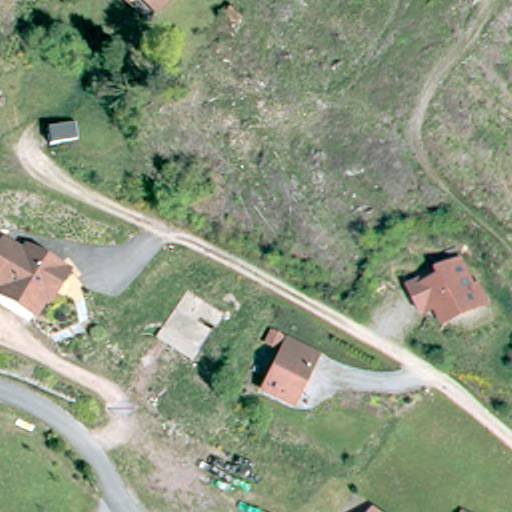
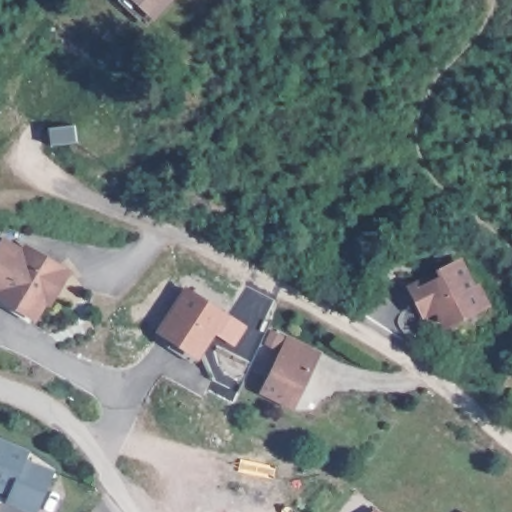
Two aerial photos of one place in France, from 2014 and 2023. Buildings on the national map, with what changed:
unchanged [(157,20),(135,0),(176,0),(157,20)]
unchanged [(74,135),(77,153),(48,153),(47,135),(74,135)]
unchanged [(0,250),(6,240),(48,265),(61,274),(50,290),(46,289),(30,316),(27,314),(0,298),(0,250)]
unchanged [(489,308),(483,311),(469,318),(459,315),(447,321),(442,311),(432,316),(418,290),(434,281),(446,275),(464,266),(478,293),(481,291),(489,308)]
new [(155,332),(183,286),(230,315),(199,361),(155,332)]
unchanged [(277,358),(284,344),(313,358),(306,372),(289,407),(260,393),(277,358)]
new [(29,458),(57,469),(39,510),(11,498),(14,490),(0,485),(0,435),(33,449),(29,458)]

